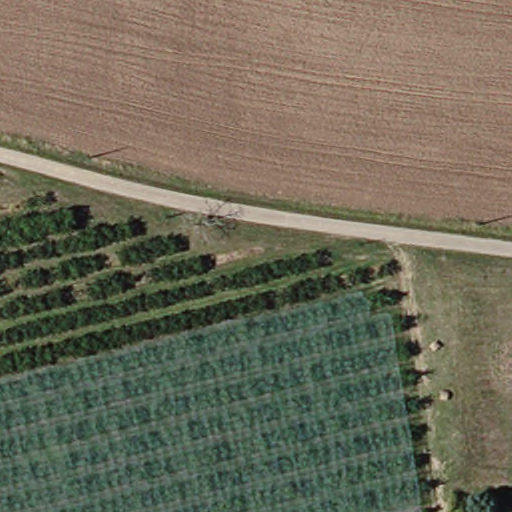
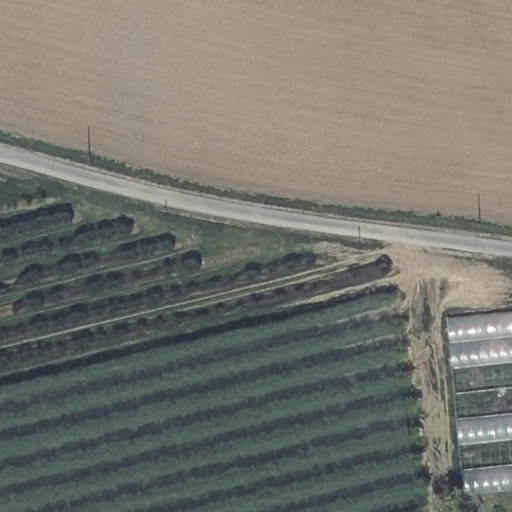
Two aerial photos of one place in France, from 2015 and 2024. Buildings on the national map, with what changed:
new [(512,310),(512,488),(469,493),(447,316),(512,310)]

